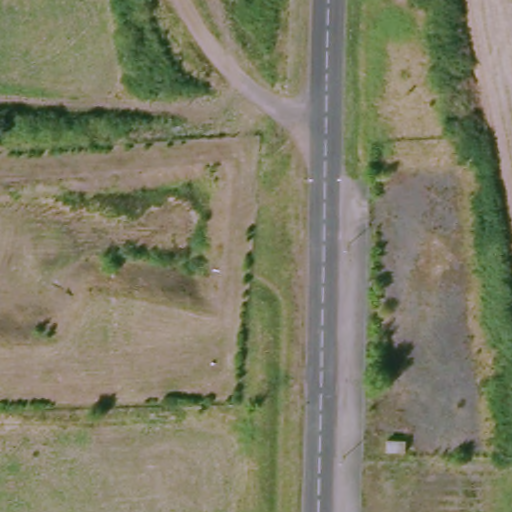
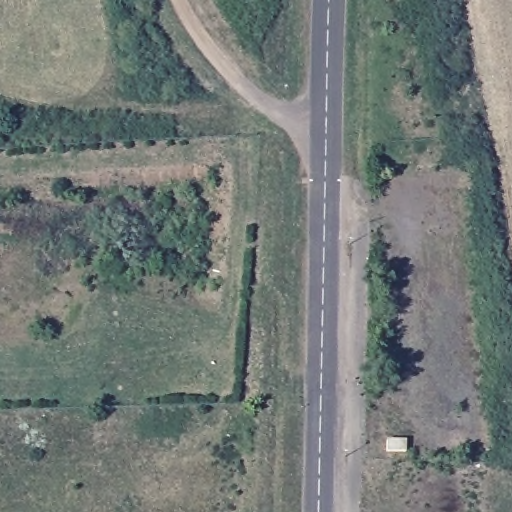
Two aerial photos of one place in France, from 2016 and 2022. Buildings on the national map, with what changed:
unchanged [(385,453),(385,443),(405,443),(404,453),(385,453)]

